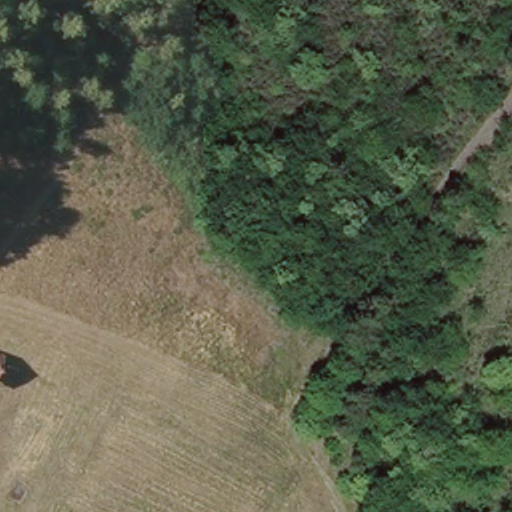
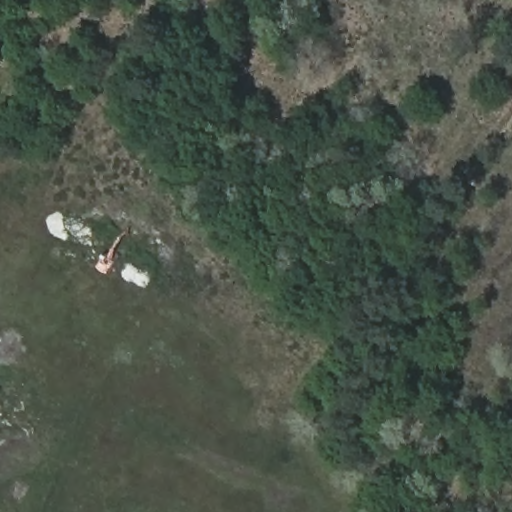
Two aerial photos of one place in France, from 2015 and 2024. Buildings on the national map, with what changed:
unchanged [(0,366),(0,360),(1,360),(0,366)]

